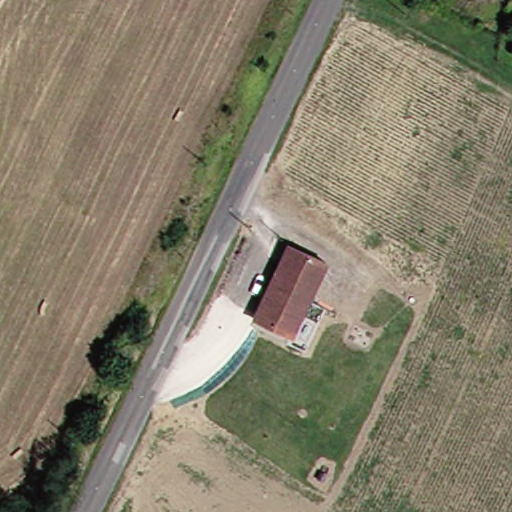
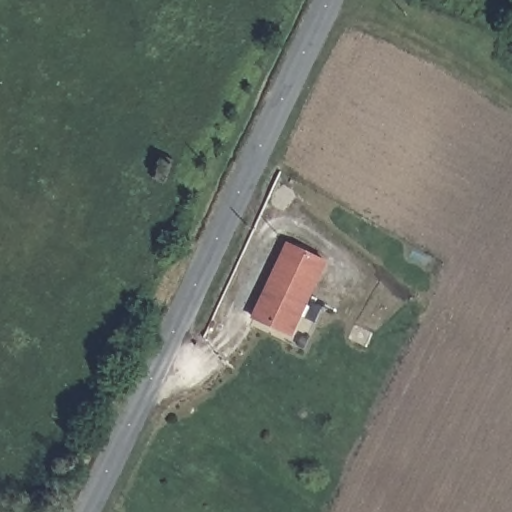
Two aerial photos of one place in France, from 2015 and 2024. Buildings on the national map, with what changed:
unchanged [(296,340),(257,321),(299,235),(336,252),(296,340)]

